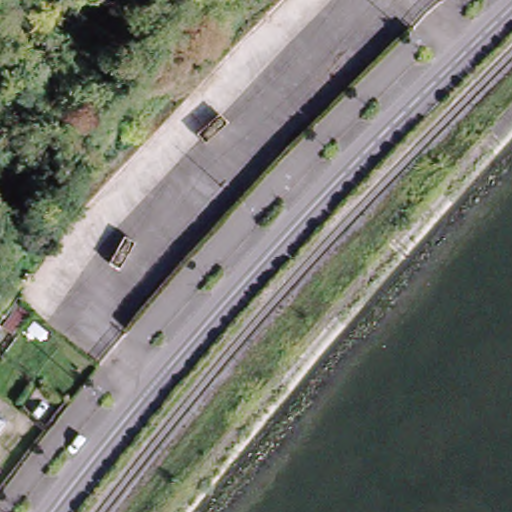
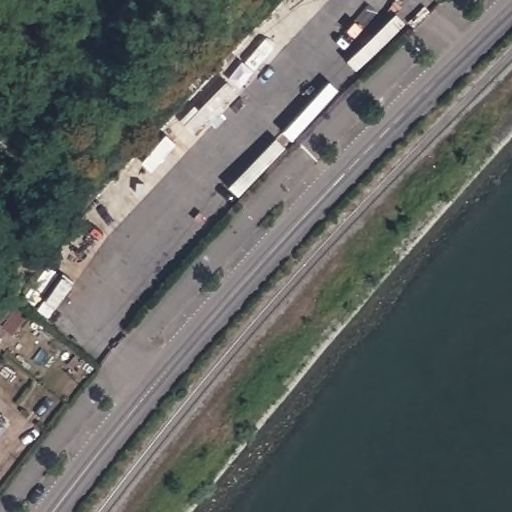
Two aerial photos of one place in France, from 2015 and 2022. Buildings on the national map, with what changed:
unchanged [(9,337),(0,330),(0,325),(15,306),(26,315),(9,337)]
unchanged [(4,421),(0,426),(0,418),(4,421)]

